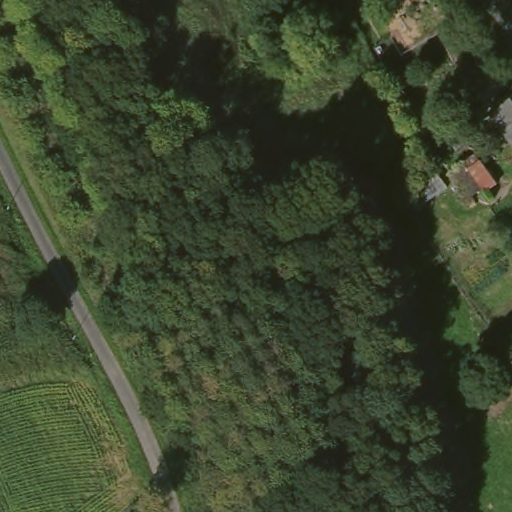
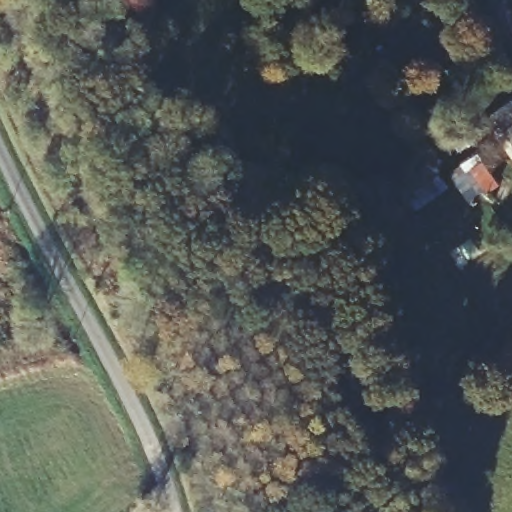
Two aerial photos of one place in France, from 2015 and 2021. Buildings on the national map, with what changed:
unchanged [(498,109),(512,100),(512,131),(498,109)]
unchanged [(475,201),(453,171),(484,149),(508,181),(475,201)]

